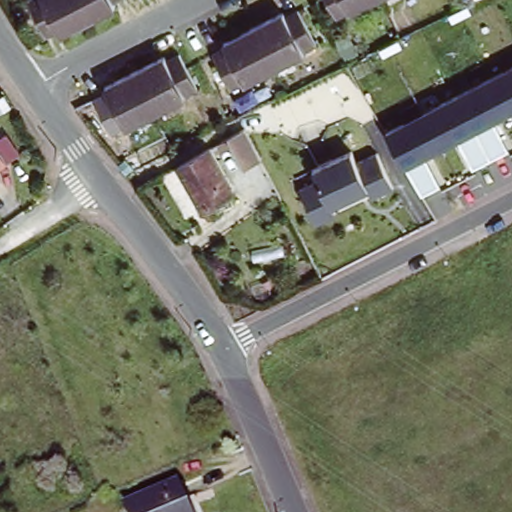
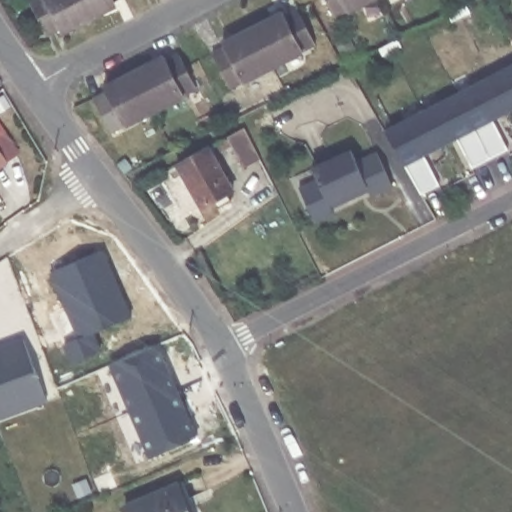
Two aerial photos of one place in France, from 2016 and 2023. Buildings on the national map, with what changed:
unchanged [(46,38),(35,43),(18,10),(29,5),(27,1),(29,0),(112,0),(113,2),(102,8),(103,11),(76,26),(48,41),(46,38)]
unchanged [(341,15),(329,21),(318,1),(317,0),(375,0),(372,1),(343,18),(341,15)]
unchanged [(238,90),(237,88),(226,94),(207,58),(220,51),(218,47),(246,32),(276,16),(278,21),(291,15),(309,49),(296,56),(297,59),(268,74),(238,90)]
unchanged [(119,131),(118,129),(105,136),(88,100),(100,93),(98,89),(128,75),(156,61),(158,65),(173,57),(181,72),(191,92),(175,100),(176,102),(149,116),(119,131)]
unchanged [(494,118),(457,136),(454,131),(421,146),(423,153),(405,161),(387,131),(512,66),(512,102),(492,111),(494,118)]
unchanged [(241,170),(228,149),(224,151),(220,143),(224,141),(228,139),(242,131),(258,160),(241,170)]
unchanged [(236,194),(229,197),(233,206),(219,214),(215,205),(203,212),(179,168),(183,166),(212,150),(236,194)]
unchanged [(316,224),(309,210),(299,190),(317,182),(311,170),(350,152),(355,164),(376,154),(391,188),(370,198),(368,192),(331,210),(333,215),(316,224)]
unchanged [(5,166),(0,170),(0,158),(5,166)]
new [(132,316),(93,333),(101,350),(73,362),(66,345),(80,338),(51,273),(98,253),(115,294),(121,292),(132,316)]
new [(0,420),(0,348),(27,339),(50,402),(0,420)]
new [(148,456),(108,363),(153,342),(195,436),(148,456)]
unchanged [(188,512),(129,512),(128,510),(177,488),(188,512)]

